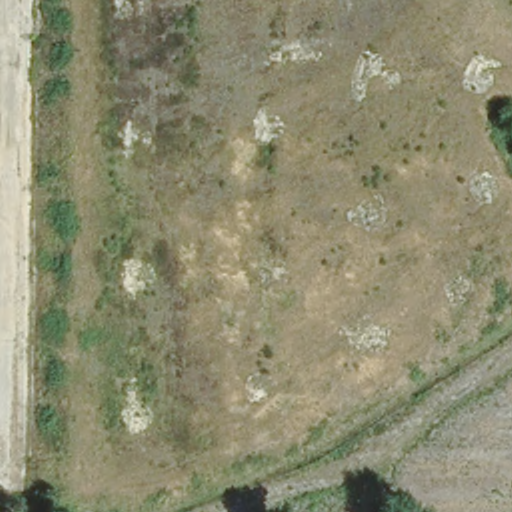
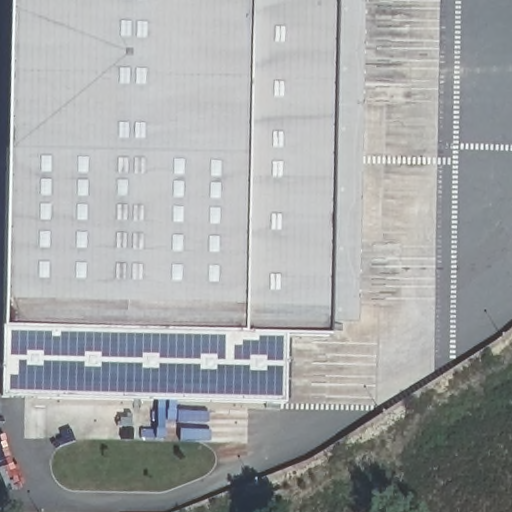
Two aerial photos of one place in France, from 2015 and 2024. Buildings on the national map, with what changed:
new [(9,0),(252,0),(246,333),(2,328),(9,0)]
new [(333,322),(332,334),(287,333),(246,333),(252,0),(367,0),(360,321),(333,322)]
new [(0,397),(2,328),(246,333),(287,333),(286,403),(0,397)]

